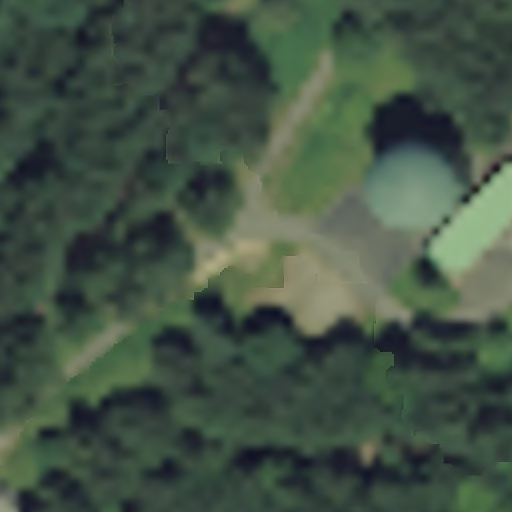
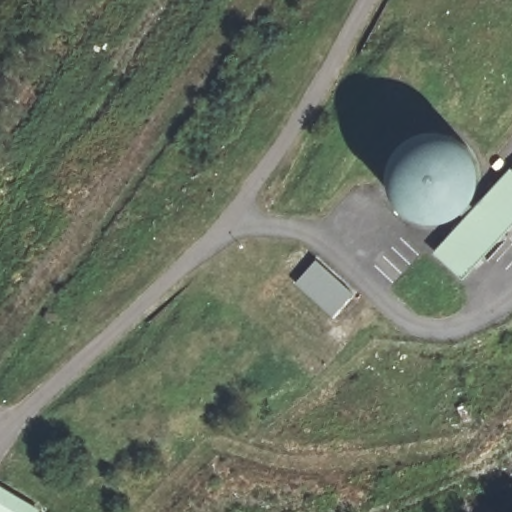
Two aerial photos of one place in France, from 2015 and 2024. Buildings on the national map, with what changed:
unchanged [(395,164),(401,150),(414,137),(429,131),(440,130),(456,135),(468,142),(478,157),(481,175),(479,191),(471,204),(461,215),(448,220),(433,219),(419,215),(409,207),(401,200),(396,190),(394,175),(395,164)]
unchanged [(512,168),(512,230),(465,280),(439,251),(512,168)]
new [(320,255),(358,291),(330,318),(294,283),(320,255)]
unchanged [(41,512),(0,512),(0,483),(44,505),(41,512)]

